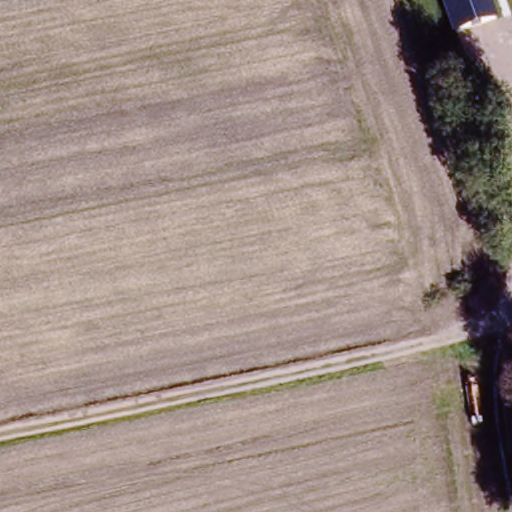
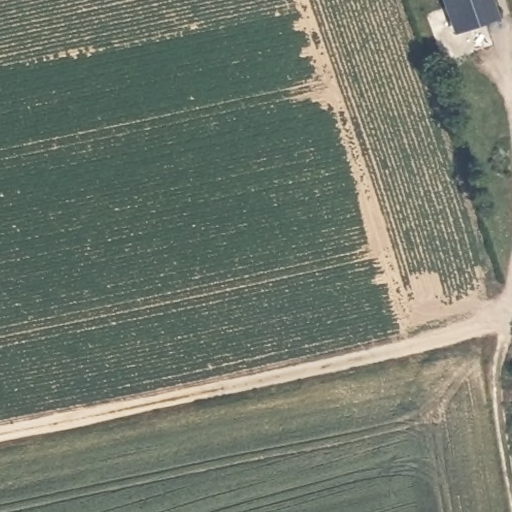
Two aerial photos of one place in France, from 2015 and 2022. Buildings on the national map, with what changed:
unchanged [(490,0),(495,12),(453,28),(442,0),(490,0)]

